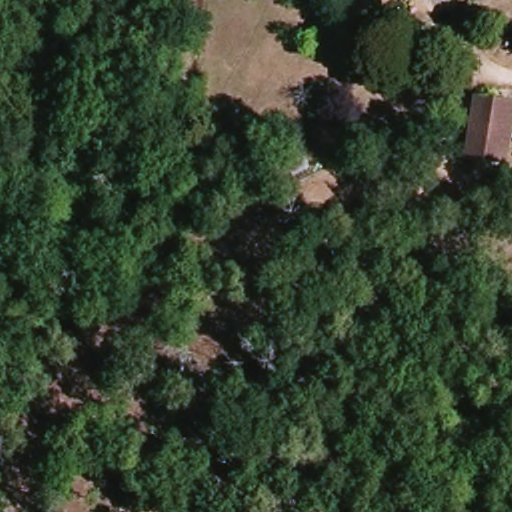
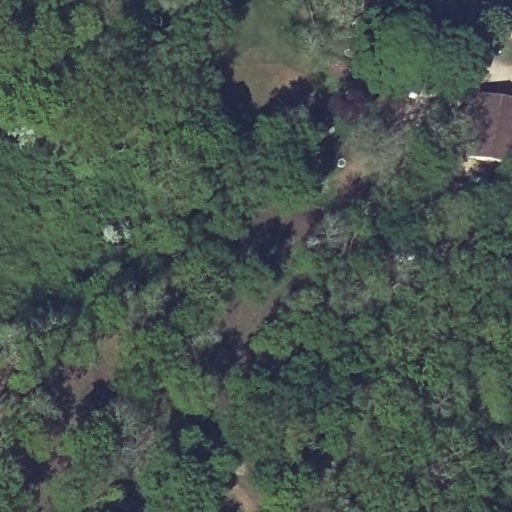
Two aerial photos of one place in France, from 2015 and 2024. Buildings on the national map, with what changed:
unchanged [(512,102),(503,162),(465,156),(475,96),(512,102)]

